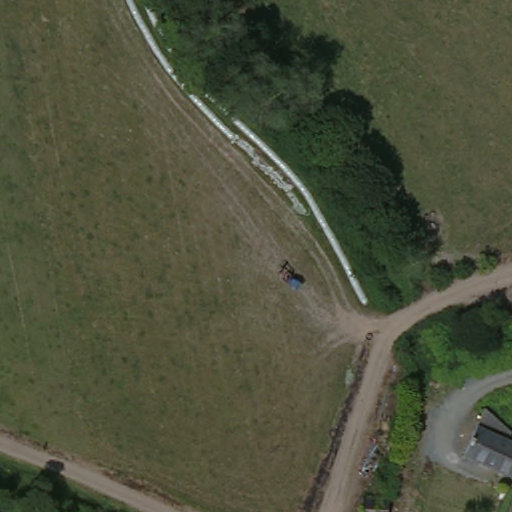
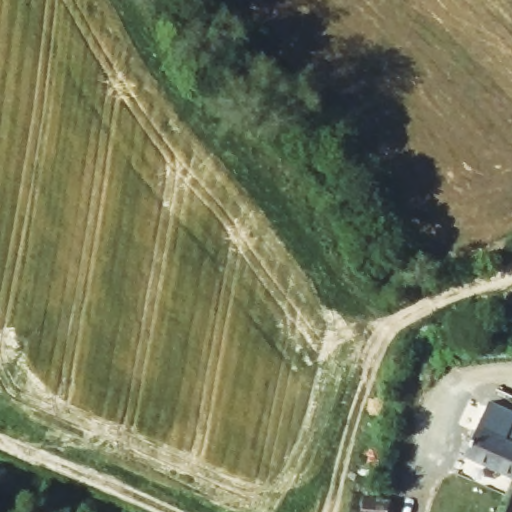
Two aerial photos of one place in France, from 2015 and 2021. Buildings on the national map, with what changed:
unchanged [(476,429),(482,432),(489,419),(492,414),(500,418),(498,423),(512,431),(512,444),(512,480),(464,456),(476,429)]
unchanged [(382,507),(372,505),(374,485),(392,485),(389,507),(382,507)]

